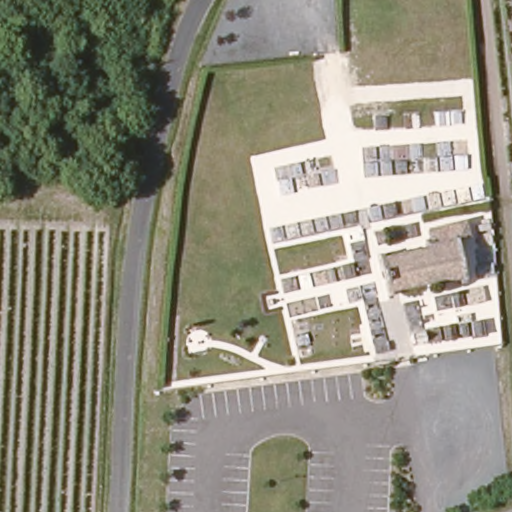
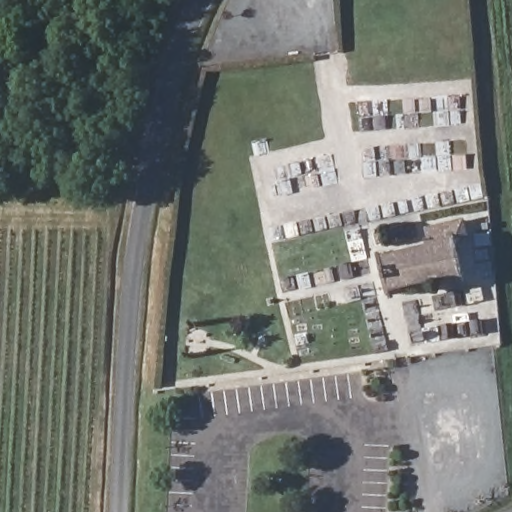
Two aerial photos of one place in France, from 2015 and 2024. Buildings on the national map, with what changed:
unchanged [(460,284),(459,279),(440,282),(440,288),(430,290),(430,284),(396,290),(396,295),(388,296),(379,251),(390,249),(392,256),(425,250),(424,243),(433,242),(431,232),(471,225),(473,242),(465,244),(471,282),(460,284)]

